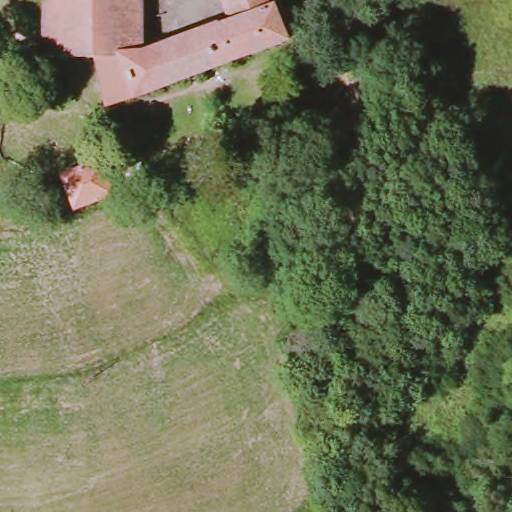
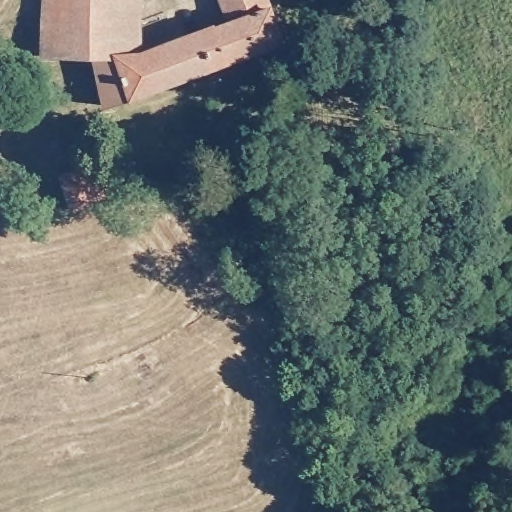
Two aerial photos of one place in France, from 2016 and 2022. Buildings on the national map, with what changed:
unchanged [(101,99),(94,70),(92,61),(35,52),(38,0),(134,0),(134,13),(157,5),(161,17),(134,26),(134,49),(208,21),(210,24),(224,18),(216,0),(266,0),(281,37),(128,94),(101,99)]
unchanged [(72,208),(60,174),(98,160),(111,194),(72,208)]

